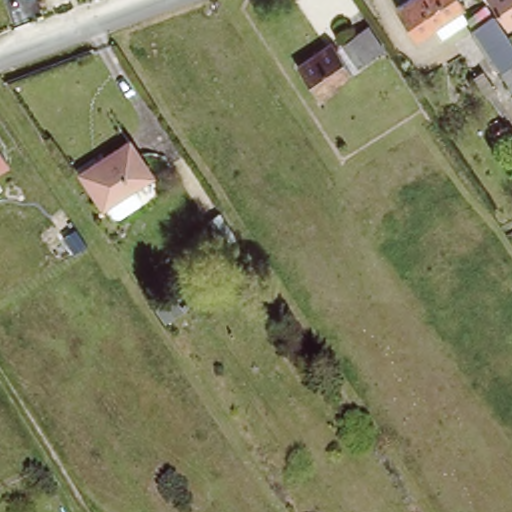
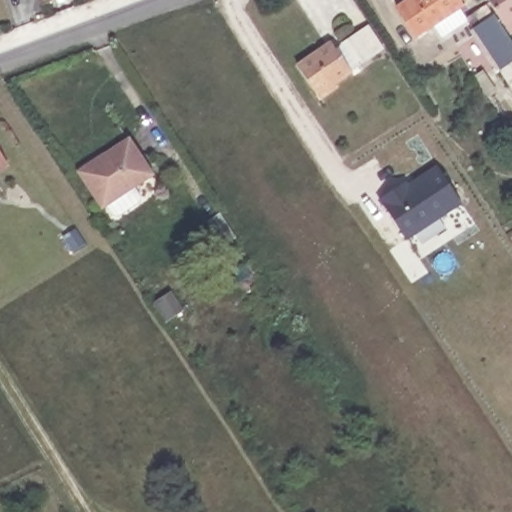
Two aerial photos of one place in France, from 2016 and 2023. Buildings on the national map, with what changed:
unchanged [(462,2),(459,5),(467,19),(448,30),(440,17),(416,32),(398,4),(404,0),(460,0),(462,2)]
unchanged [(509,29),(505,24),(490,0),(512,0),(512,27),(509,29)]
unchanged [(467,21),(487,7),(512,45),(512,90),(467,21)]
unchanged [(320,99),(317,93),(297,65),(334,41),(337,47),(357,34),(370,25),(385,47),(372,56),(330,85),(333,90),(320,99)]
unchanged [(84,175),(82,170),(91,164),(127,140),(150,175),(105,205),(84,175)]
unchanged [(0,169),(0,150),(8,164),(0,169)]
new [(405,180),(409,185),(436,165),(461,203),(405,240),(377,199),(405,180)]
new [(169,294),(181,313),(162,325),(150,306),(169,294)]

